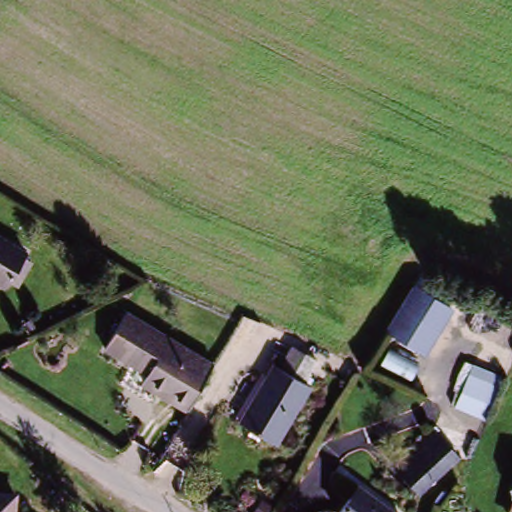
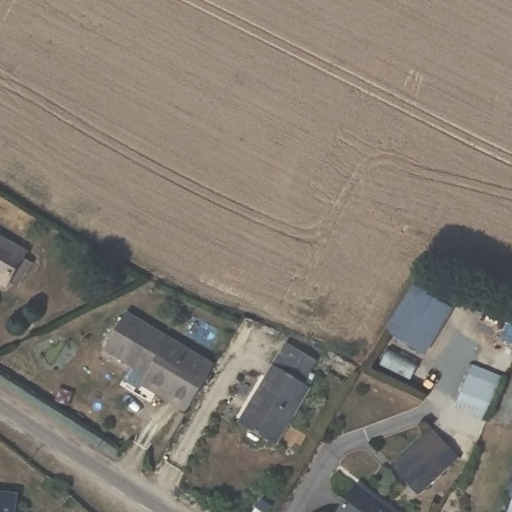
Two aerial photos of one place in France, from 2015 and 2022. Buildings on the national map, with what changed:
unchanged [(5,294),(0,291),(0,248),(22,262),(22,264),(32,269),(16,296),(6,290),(5,294)]
unchanged [(431,351),(395,330),(397,327),(409,307),(422,286),(457,312),(431,351)]
unchanged [(155,373),(112,349),(132,313),(175,338),(163,359),(155,373)]
unchanged [(175,338),(219,363),(192,411),(147,386),(155,373),(163,359),(175,338)]
unchanged [(414,378),(385,361),(395,344),(396,342),(408,349),(425,359),(414,378)]
unchanged [(276,446),(237,425),(272,366),(280,370),(292,347),(306,354),(316,359),(302,383),(309,386),(276,446)]
unchanged [(487,380),(473,411),(451,401),(465,370),(487,380)]
unchanged [(422,479),(412,488),(403,477),(387,460),(421,430),(427,425),(442,443),(452,456),(422,479)]
unchanged [(0,488),(19,490),(16,512),(0,512),(0,488)]
unchanged [(354,488),(387,512),(336,512),(354,488)]

